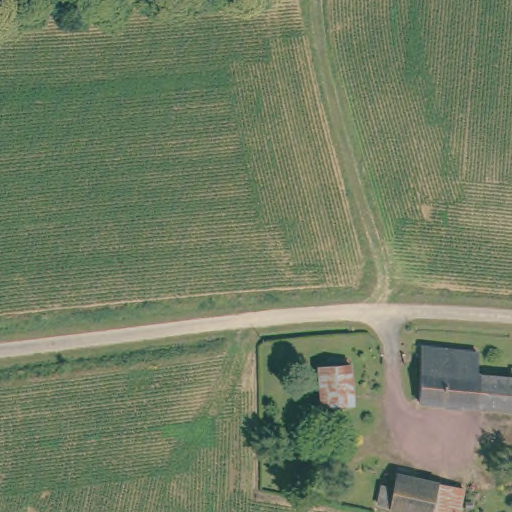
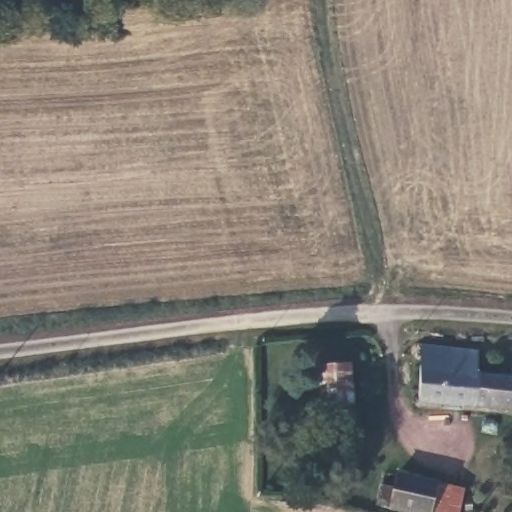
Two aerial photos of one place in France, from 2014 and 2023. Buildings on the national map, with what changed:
unchanged [(427,343),(483,349),(483,367),(512,368),(512,404),(421,400),(427,343)]
unchanged [(322,363),(350,362),(355,402),(325,403),(322,363)]
unchanged [(400,484),(402,472),(467,482),(463,508),(448,506),(447,512),(383,500),(386,481),(400,484)]

